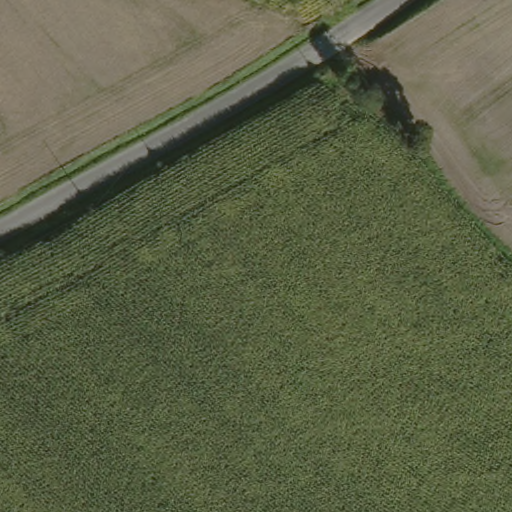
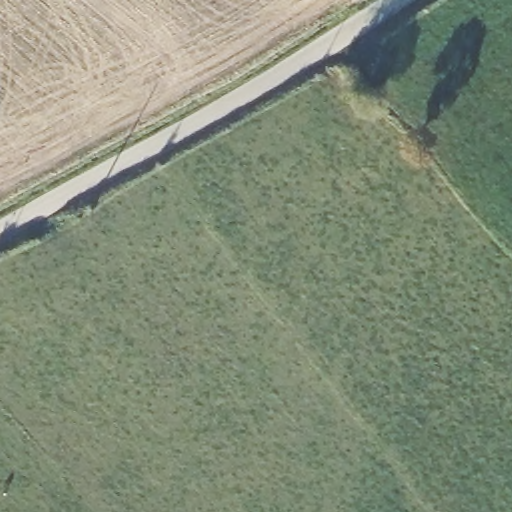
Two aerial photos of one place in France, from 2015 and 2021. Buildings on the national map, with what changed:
[]

